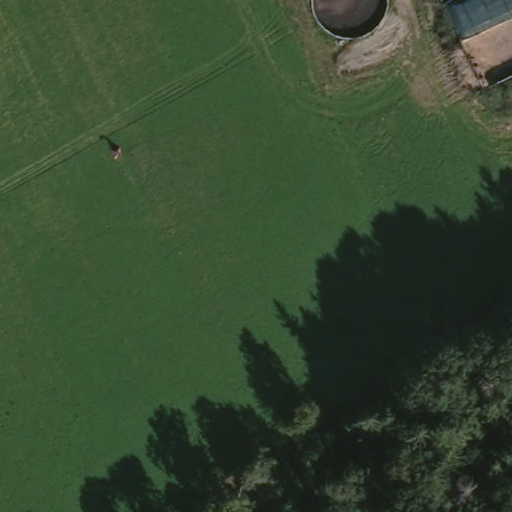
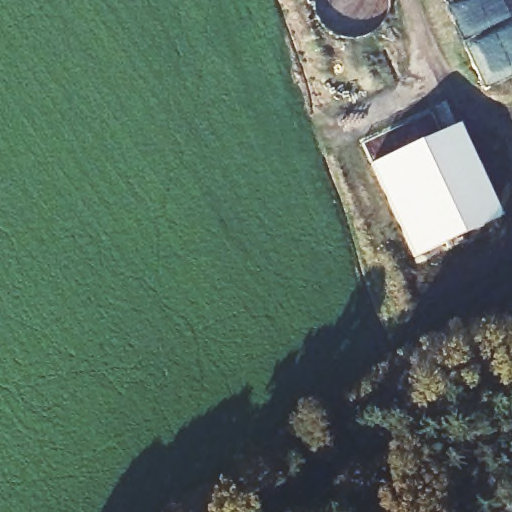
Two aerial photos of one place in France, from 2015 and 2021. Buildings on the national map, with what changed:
new [(462,122),(504,215),(433,247),(391,154),(462,122)]

